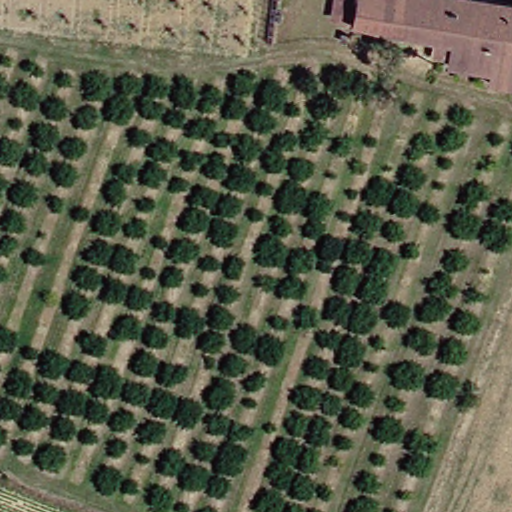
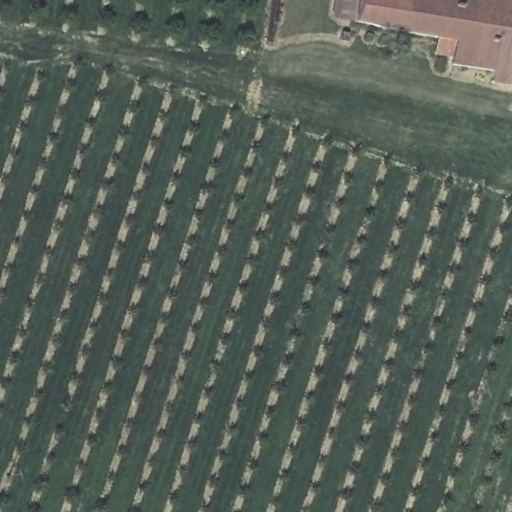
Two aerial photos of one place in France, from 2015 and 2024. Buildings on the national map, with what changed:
unchanged [(481,74),(440,68),(441,59),(422,56),(423,41),(358,31),(345,26),(326,21),(329,0),(489,0),(512,3),(512,91),(505,91),(481,88),(481,74)]

